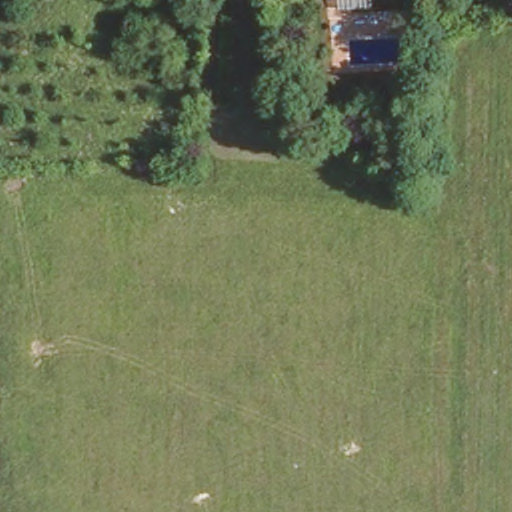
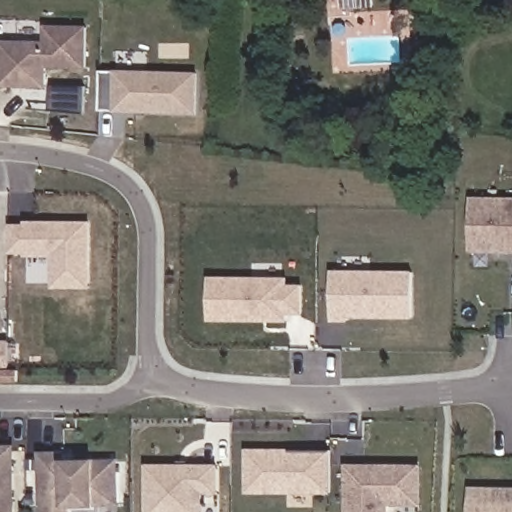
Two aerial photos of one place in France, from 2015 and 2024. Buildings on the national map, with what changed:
new [(84,69),(46,67),(45,89),(0,87),(0,63),(0,39),(42,40),(43,24),(87,26),(84,69)]
new [(197,115),(102,113),(103,73),(198,75),(197,115)]
new [(470,196),(512,197),(512,253),(469,252),(470,196)]
new [(50,257),(23,256),(23,254),(9,254),(9,225),(24,225),(24,221),(90,221),(91,287),(49,287),(50,257)]
new [(409,271),(408,319),(332,318),(332,270),(409,271)]
new [(285,321),(206,320),(207,276),(288,276),(288,285),(303,285),(300,316),(285,316),(285,321)]
new [(8,341),(8,367),(16,367),(16,377),(0,377),(0,341),(8,341)]
new [(14,445),(14,512),(0,512),(0,445),(14,445)]
new [(330,495),(244,495),(244,448),(288,448),(288,452),(331,452),(330,495)]
new [(69,505),(69,512),(40,512),(40,505),(38,505),(38,452),(67,451),(66,459),(93,458),(117,458),(118,506),(94,505),(69,505)]
new [(195,512),(145,512),(144,463),(217,465),(217,494),(205,493),(195,512)]
new [(350,512),(350,465),(422,465),(422,503),(390,503),(390,512),(350,512)]
new [(512,486),(512,512),(467,512),(467,485),(512,486)]

